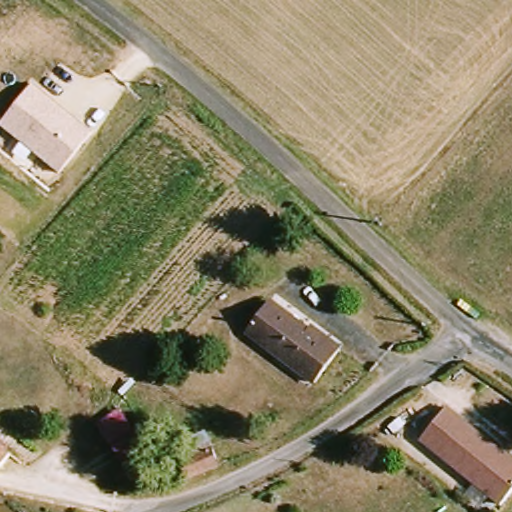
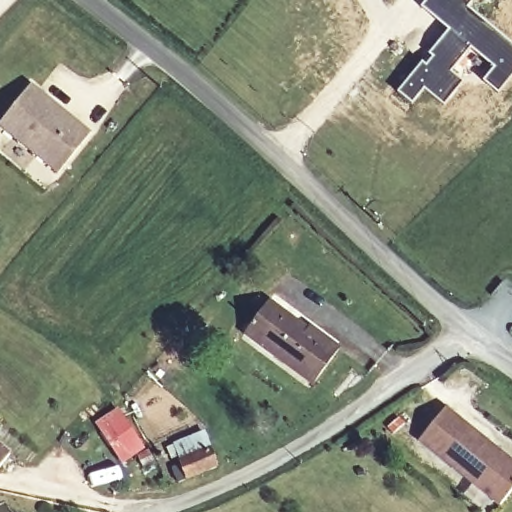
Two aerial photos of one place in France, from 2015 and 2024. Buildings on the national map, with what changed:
new [(472,0),(474,1),(469,6),(512,42),(512,77),(498,94),(482,80),(491,68),(471,50),(447,30),(421,6),(426,0),(472,0)]
new [(447,30),(471,50),(452,71),(464,81),(444,105),(424,90),(411,105),(396,92),(447,30)]
unchanged [(58,175),(0,125),(0,124),(31,84),(91,131),(58,175)]
unchanged [(276,305),(314,332),(318,327),(346,349),(319,385),(252,335),(276,305)]
unchanged [(98,425),(123,406),(149,445),(126,462),(98,425)]
unchanged [(456,407),(512,454),(512,496),(504,505),(427,440),(456,407)]
unchanged [(174,463),(188,459),(185,451),(215,442),(221,457),(191,469),(178,474),(174,463)]
unchanged [(0,469),(0,444),(13,453),(0,469)]

